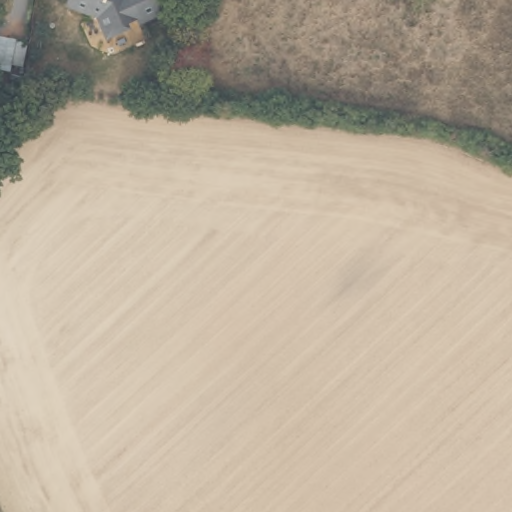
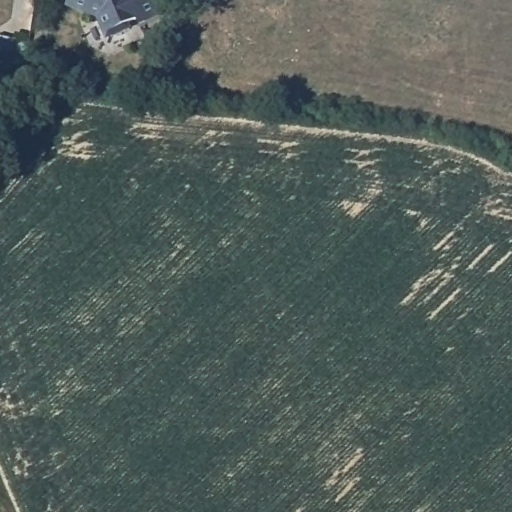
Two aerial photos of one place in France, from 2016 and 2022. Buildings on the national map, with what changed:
unchanged [(162,12),(138,23),(136,19),(127,22),(124,29),(111,35),(97,17),(66,5),(67,0),(156,0),(162,12)]
unchanged [(17,32),(13,60),(0,58),(0,31),(17,32)]

